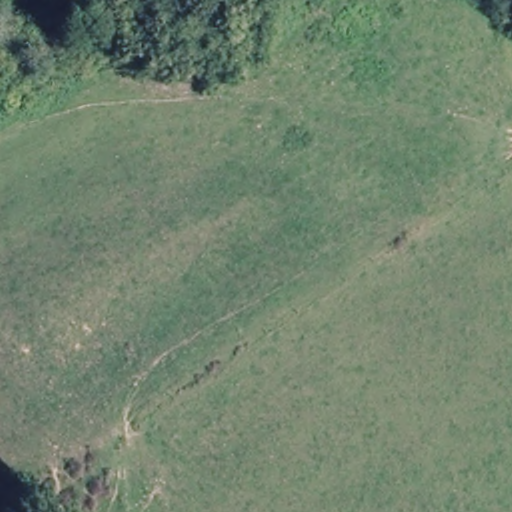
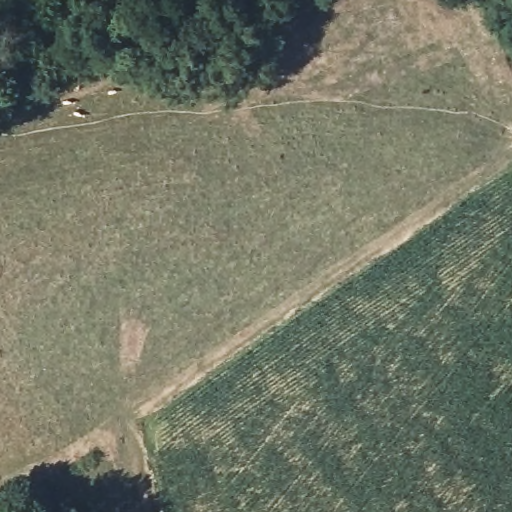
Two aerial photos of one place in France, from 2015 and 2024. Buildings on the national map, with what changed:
[]

